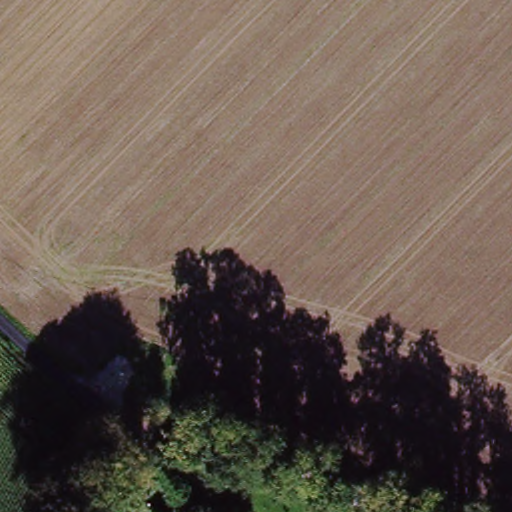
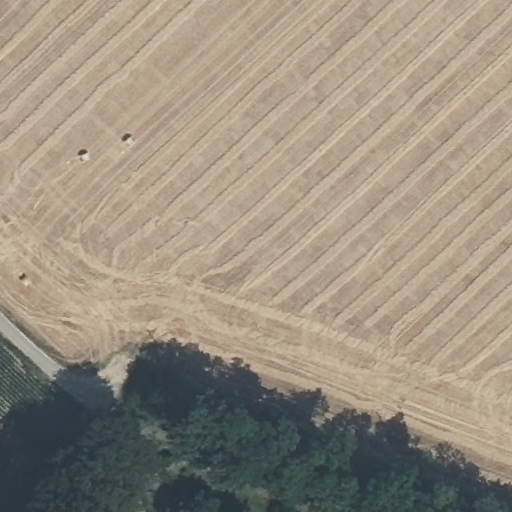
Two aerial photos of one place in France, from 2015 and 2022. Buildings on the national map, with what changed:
[]

